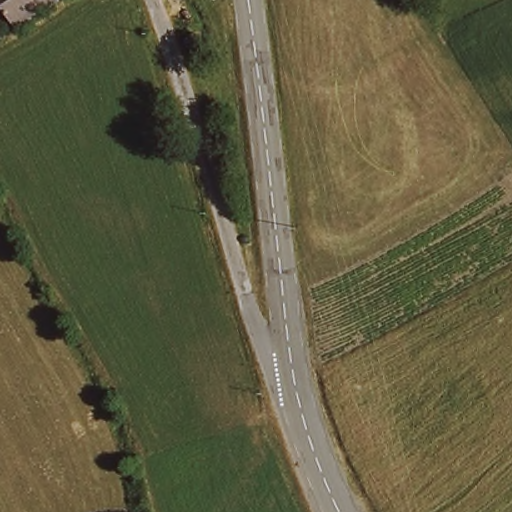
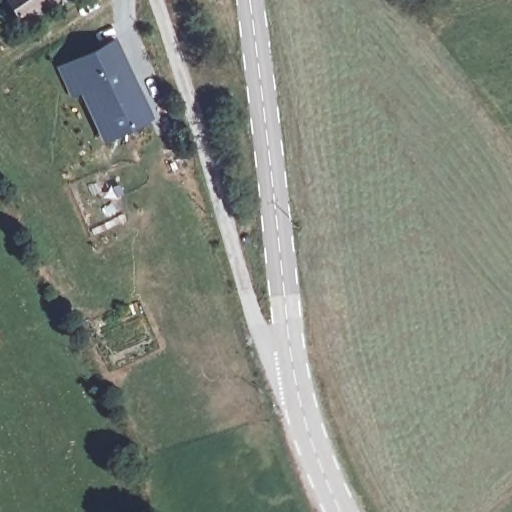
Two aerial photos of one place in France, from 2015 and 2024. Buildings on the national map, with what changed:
unchanged [(13,26),(8,15),(1,1),(0,0),(49,0),(25,17),(13,26)]
new [(115,39),(154,118),(101,142),(79,94),(70,99),(55,66),(115,39)]

